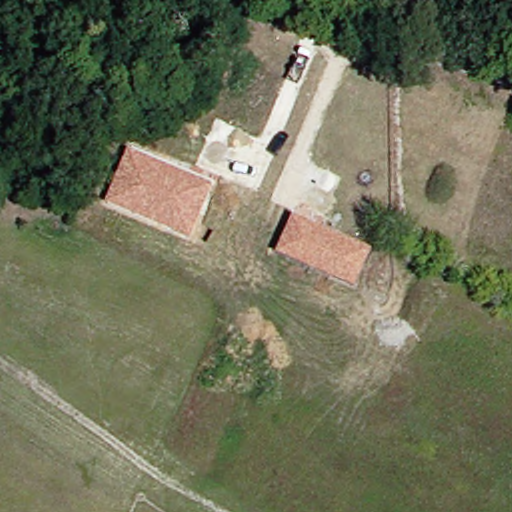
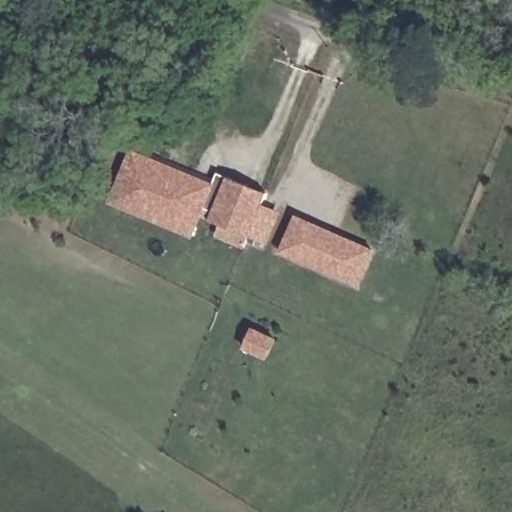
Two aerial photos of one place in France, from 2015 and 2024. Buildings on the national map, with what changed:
unchanged [(213,183),(192,238),(105,202),(128,149),(213,183)]
new [(217,172),(266,193),(261,204),(282,211),(268,244),(248,237),(244,249),(215,237),(219,226),(200,217),(213,183),(217,172)]
unchanged [(355,288),(276,251),(292,213),(372,249),(355,288)]
new [(241,349),(251,327),(277,339),(267,361),(241,349)]

